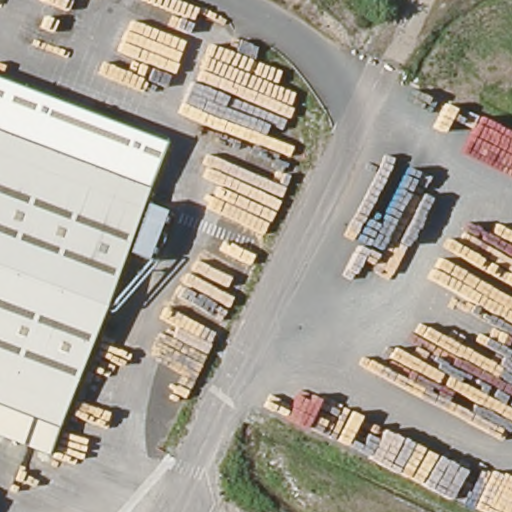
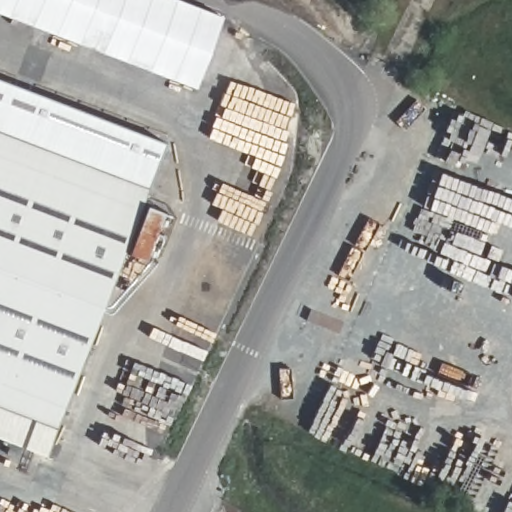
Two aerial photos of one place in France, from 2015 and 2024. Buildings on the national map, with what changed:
new [(231,14),(205,87),(0,8),(0,0),(192,0),(231,14)]
unchanged [(165,142),(147,189),(0,134),(0,79),(165,142)]
unchanged [(147,189),(141,203),(163,214),(144,260),(125,252),(55,427),(0,406),(0,134),(147,189)]
unchanged [(44,455),(0,438),(0,406),(55,427),(44,455)]

